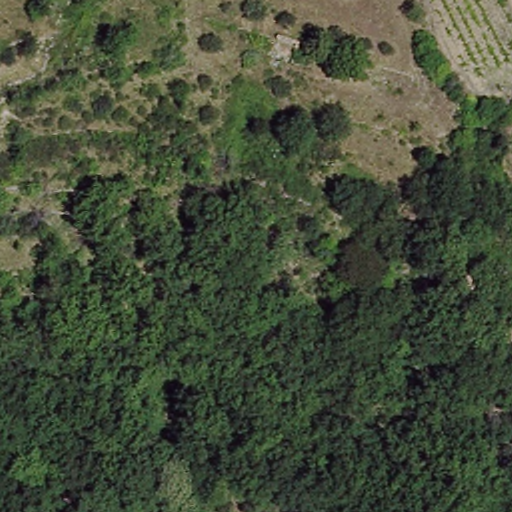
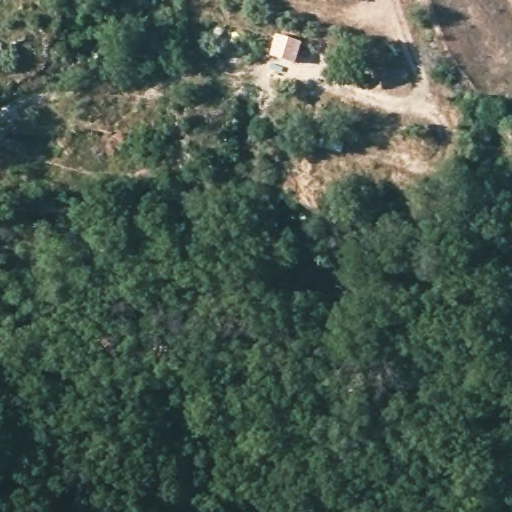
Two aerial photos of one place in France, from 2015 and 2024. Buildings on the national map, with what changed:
unchanged [(272,56),(282,38),(301,48),(292,68),(272,56)]

